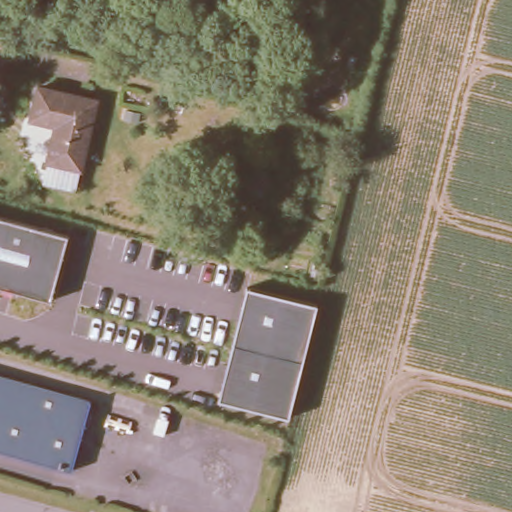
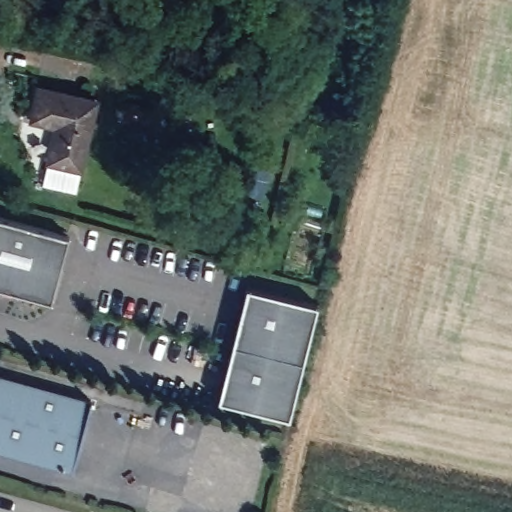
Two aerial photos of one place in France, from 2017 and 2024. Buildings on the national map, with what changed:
unchanged [(55,125),(30,118),(36,85),(96,99),(80,168),(75,190),(42,183),(47,161),(48,159),(55,125)]
unchanged [(51,301),(0,288),(0,218),(69,236),(51,301)]
unchanged [(289,418),(219,401),(247,287),(317,305),(289,418)]
unchanged [(0,371),(90,396),(70,464),(0,445),(0,371)]

